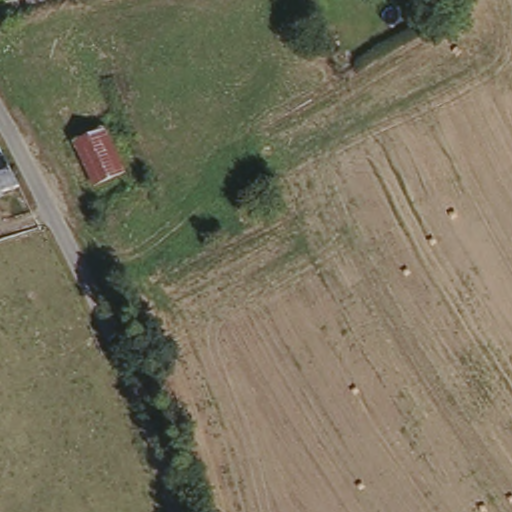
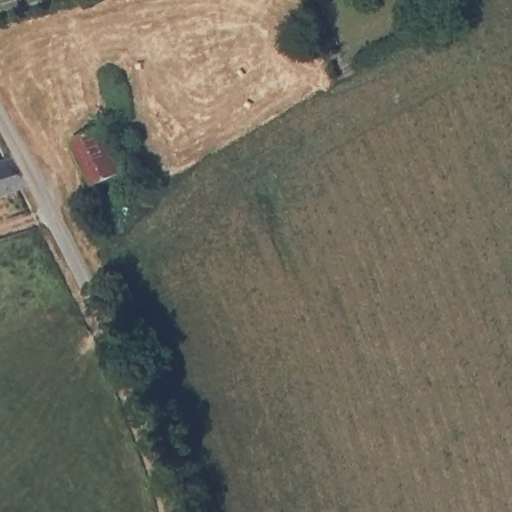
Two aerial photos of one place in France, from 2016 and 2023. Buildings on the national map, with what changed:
unchanged [(122,167),(93,180),(74,136),(103,125),(107,131),(122,167)]
unchanged [(0,190),(0,155),(5,153),(19,185),(0,190)]

